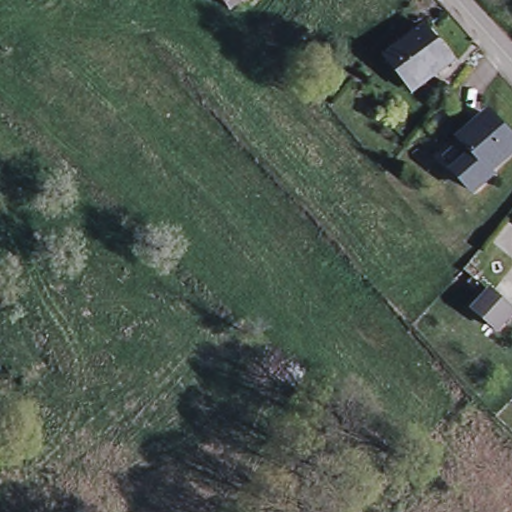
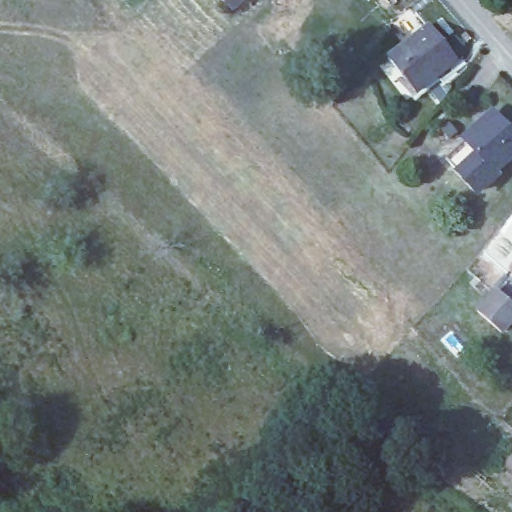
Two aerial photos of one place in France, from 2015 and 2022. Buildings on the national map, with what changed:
unchanged [(225,0),(240,0),(232,8),(225,0)]
unchanged [(387,53),(393,48),(425,22),(453,56),(422,82),(415,87),(387,53)]
unchanged [(499,105),(512,119),(512,149),(502,159),(475,129),(499,105)]
unchanged [(505,162),(485,180),(455,148),(475,129),(502,159),(505,162)]

